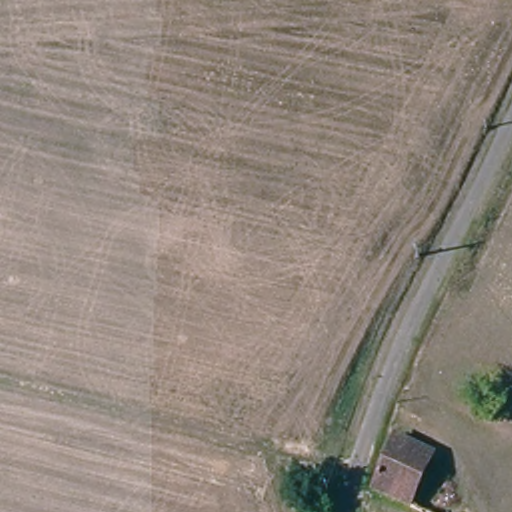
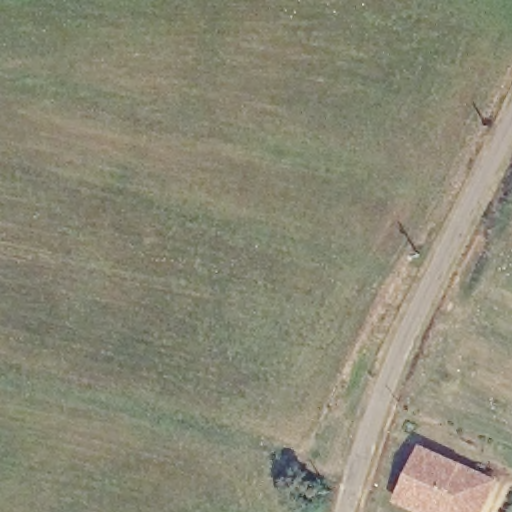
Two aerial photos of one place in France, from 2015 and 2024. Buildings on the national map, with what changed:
demolished [(442,447),(416,504),(373,488),(399,430),(442,447)]
new [(497,478),(482,512),(419,512),(394,501),(420,441),(497,478)]

